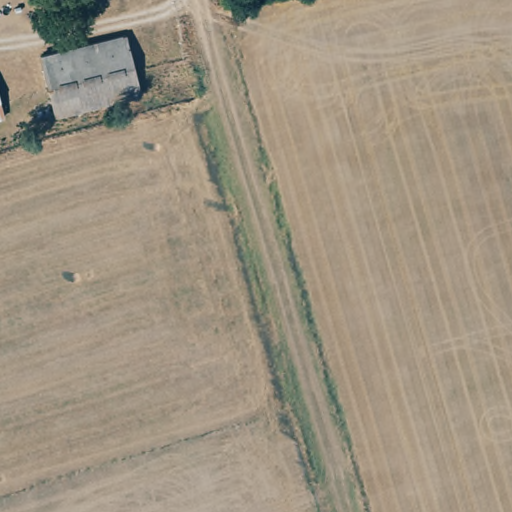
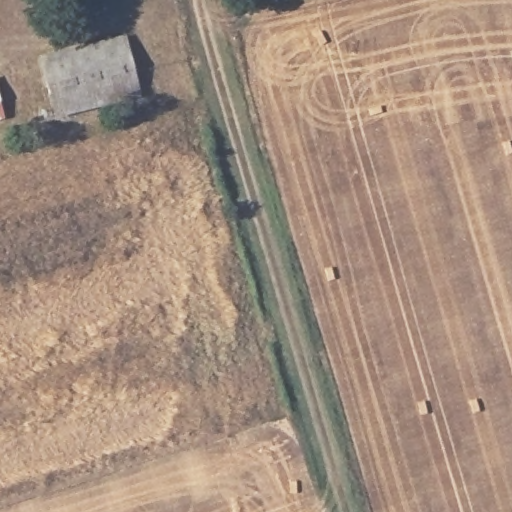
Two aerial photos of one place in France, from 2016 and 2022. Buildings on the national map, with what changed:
unchanged [(139,91),(53,116),(51,108),(37,57),(123,34),(137,84),(139,91)]
unchanged [(1,112),(0,112),(0,109),(1,112)]

